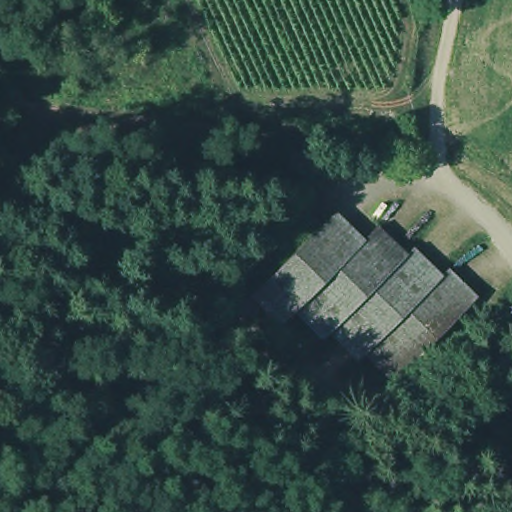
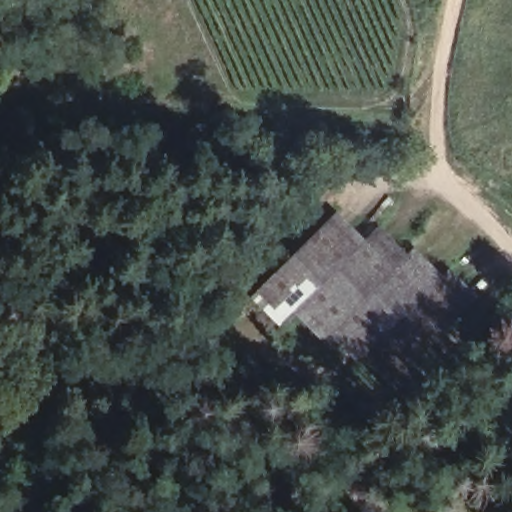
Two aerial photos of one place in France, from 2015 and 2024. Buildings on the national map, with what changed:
unchanged [(298,308),(291,314),(284,321),(256,291),(263,285),(335,215),(341,209),(370,236),(377,229),(381,224),(384,222),(391,227),(413,250),(420,244),(447,273),(454,266),(483,295),(474,303),(404,371),(397,379),(368,350),(361,356),(334,328),(326,335),(298,308)]

